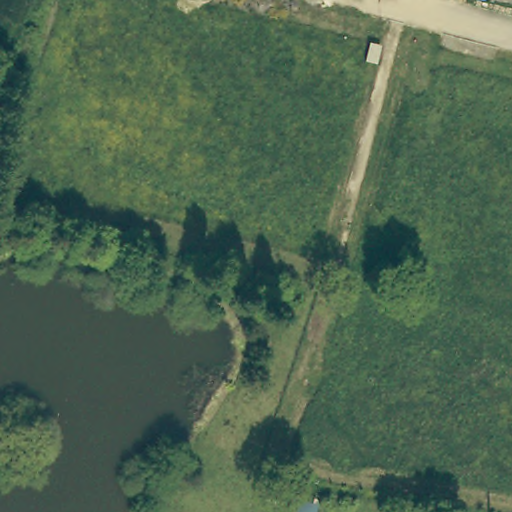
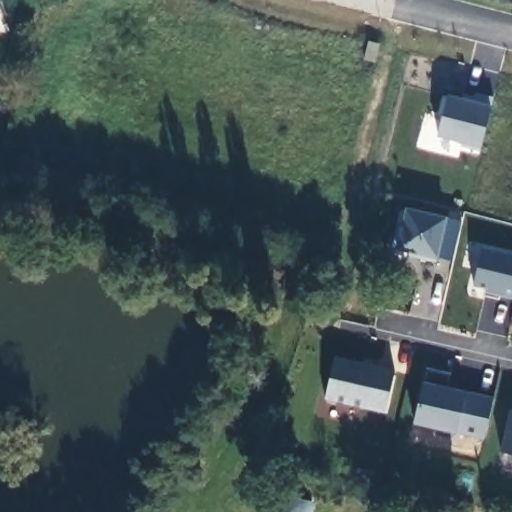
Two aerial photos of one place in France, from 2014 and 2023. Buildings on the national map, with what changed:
new [(448,96),(474,102),(476,93),(494,97),(480,151),(462,146),(463,141),(438,135),(448,96)]
new [(395,222),(399,224),(403,206),(443,216),(443,218),(459,221),(450,260),(434,256),(433,260),(405,254),(406,250),(389,245),(395,222)]
new [(512,255),(512,297),(492,292),(493,288),(478,285),(487,250),(512,255)]
new [(339,356),(399,370),(389,412),(329,398),(339,356)]
new [(424,383),(492,398),(485,440),(415,423),(424,383)]
new [(512,454),(505,452),(512,422),(512,454)]

